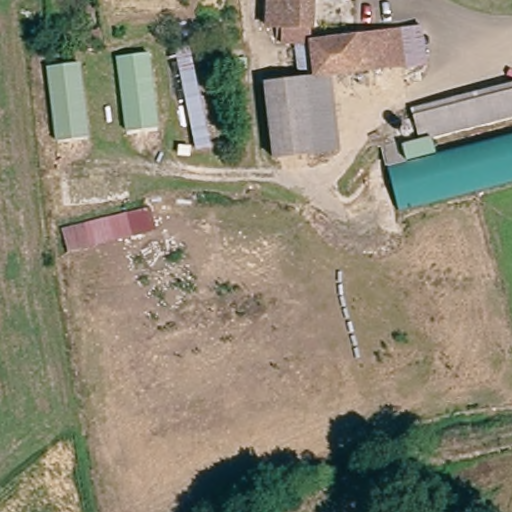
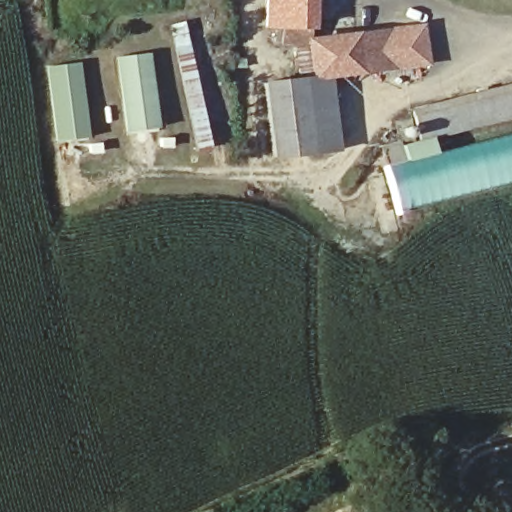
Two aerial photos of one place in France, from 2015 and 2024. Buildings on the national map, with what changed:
unchanged [(283,22),(272,22),(273,0),(314,0),(313,22),(313,39),(283,39),(283,22)]
unchanged [(171,33),(191,29),(215,146),(200,157),(171,33)]
unchanged [(334,76),(313,77),(313,39),(426,36),(427,72),(374,74),(334,76)]
unchanged [(162,128),(132,132),(123,57),(152,54),(162,128)]
unchanged [(92,137),(62,141),(52,67),(82,62),(92,137)]
unchanged [(338,147),(312,150),(310,127),(306,77),(313,77),(334,76),(336,115),(338,147)]
unchanged [(312,150),(274,153),(273,144),(269,79),(306,77),(310,127),(312,150)]
unchanged [(421,147),(414,115),(512,90),(512,123),(421,147)]
unchanged [(403,214),(386,145),(404,141),(408,158),(512,134),(512,188),(403,214)]
demolished [(72,252),(66,232),(151,206),(159,231),(72,252)]

